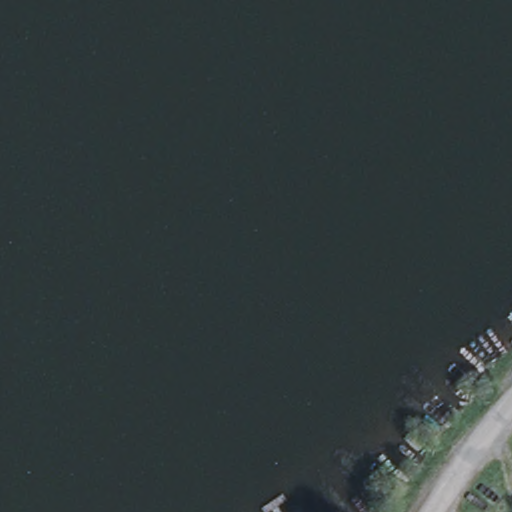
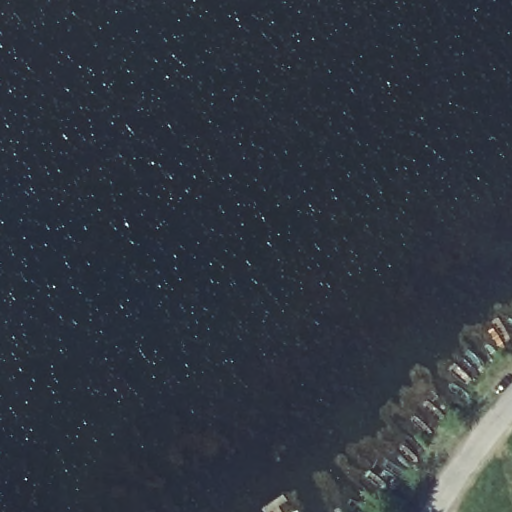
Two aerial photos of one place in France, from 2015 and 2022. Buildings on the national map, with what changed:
[]

